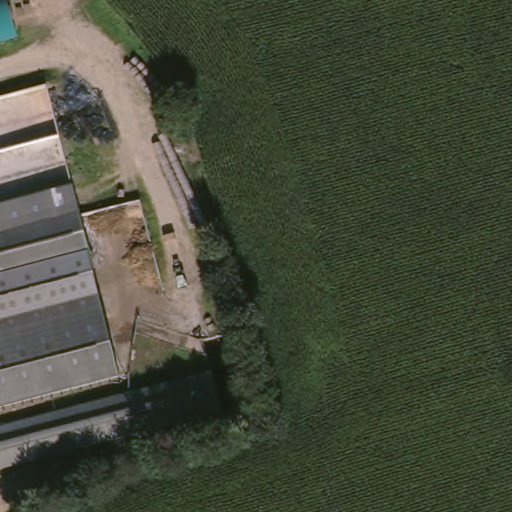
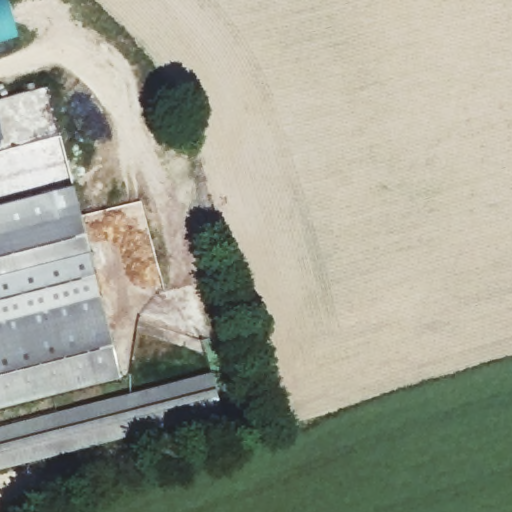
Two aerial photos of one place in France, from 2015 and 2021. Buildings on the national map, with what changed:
unchanged [(0,44),(0,0),(4,0),(16,40),(0,44)]
unchanged [(0,234),(0,202),(73,183),(81,213),(0,234)]
unchanged [(0,404),(0,234),(81,213),(121,374),(0,404)]
unchanged [(227,408),(0,467),(0,426),(217,370),(227,408)]

